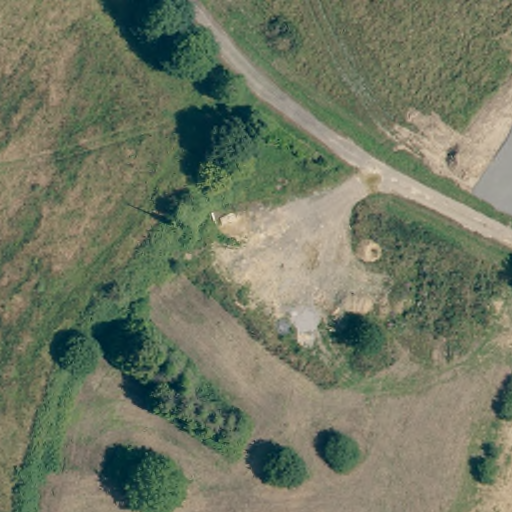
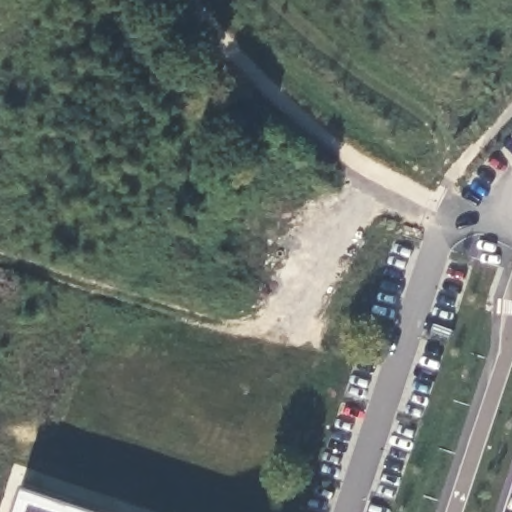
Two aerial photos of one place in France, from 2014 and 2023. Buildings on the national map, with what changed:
new [(16,484),(116,512),(5,512),(16,484)]

